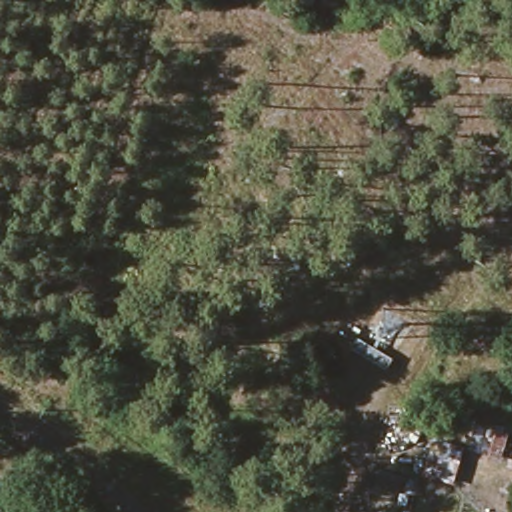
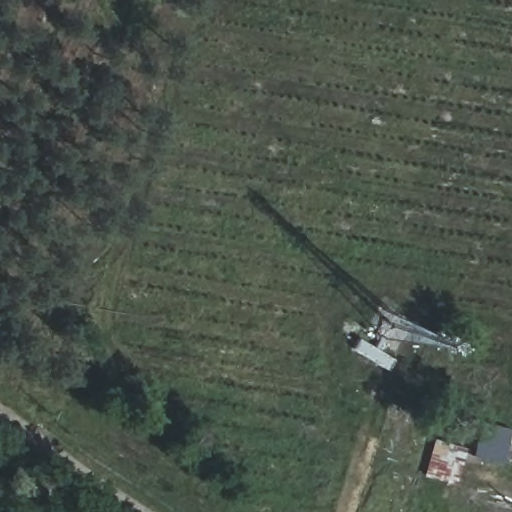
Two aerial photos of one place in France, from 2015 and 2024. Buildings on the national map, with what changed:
unchanged [(416,364),(410,375),(375,352),(381,342),(416,364)]
unchanged [(493,456),(468,449),(476,421),(501,427),(493,456)]
unchanged [(459,485),(432,478),(438,457),(465,465),(459,485)]

